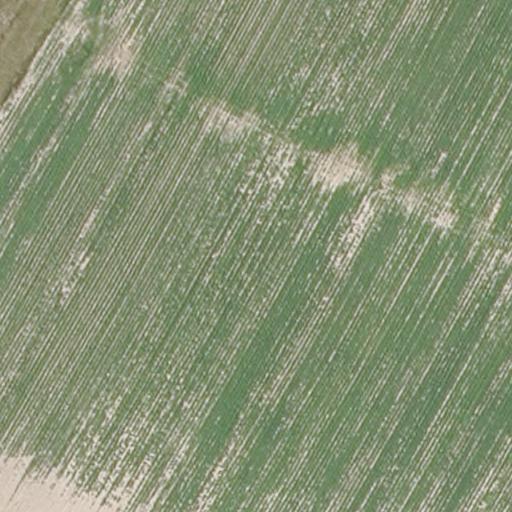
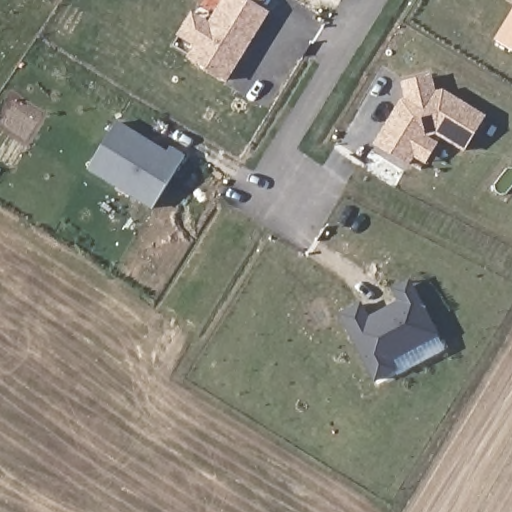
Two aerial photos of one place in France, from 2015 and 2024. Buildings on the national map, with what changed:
new [(193,15),(210,25),(224,0),(245,0),(267,14),(227,80),(190,58),(197,46),(180,36),(193,15)]
new [(512,10),(512,49),(495,38),(512,10)]
new [(430,74),(434,90),(439,93),(442,88),(484,114),(464,147),(435,129),(426,131),(408,161),(374,141),(394,110),(399,110),(402,104),(407,102),(402,80),(430,74)]
new [(406,98),(407,102),(402,104),(399,110),(394,110),(402,99),(406,98)]
new [(113,126),(141,144),(143,149),(148,151),(153,151),(163,156),(166,151),(181,160),(149,210),(86,171),(113,126)]
new [(436,141),(425,159),(413,153),(424,134),(436,141)]
new [(366,320),(376,314),(389,307),(398,302),(392,291),(408,282),(419,304),(435,336),(388,360),(393,370),(374,381),(339,315),(358,305),(366,320)]

